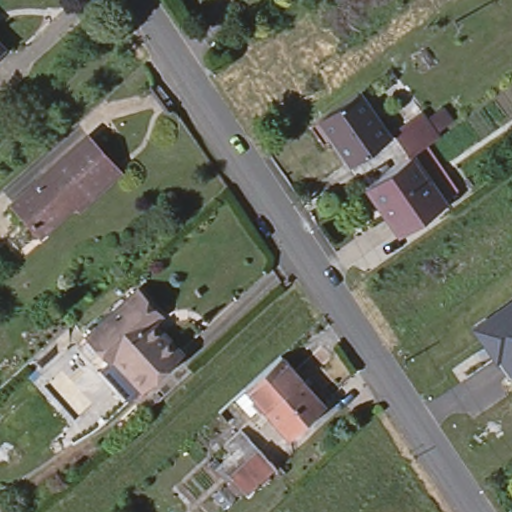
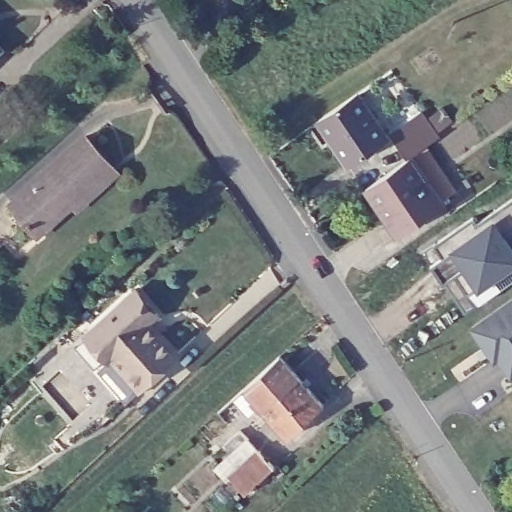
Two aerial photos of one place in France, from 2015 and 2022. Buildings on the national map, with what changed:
unchanged [(356,89),(384,133),(346,160),(316,117),(356,89)]
unchanged [(395,121),(422,102),(442,131),(410,153),(391,125),(395,121)]
unchanged [(26,221),(8,200),(81,133),(108,163),(74,194),(34,230),(26,221)]
unchanged [(387,218),(364,185),(410,153),(432,186),(441,199),(400,227),(396,230),(387,218)]
new [(468,218),(472,223),(512,196),(512,277),(461,312),(421,250),(468,218)]
unchanged [(177,350),(129,397),(123,390),(77,342),(133,287),(157,311),(148,320),(172,345),(177,350)]
unchanged [(492,360),(470,329),(512,300),(512,372),(508,375),(504,378),(492,360)]
unchanged [(326,407),(290,440),(246,391),(281,358),(326,407)]
unchanged [(243,494),(228,477),(226,479),(213,468),(246,436),(259,449),(274,465),(243,494)]

